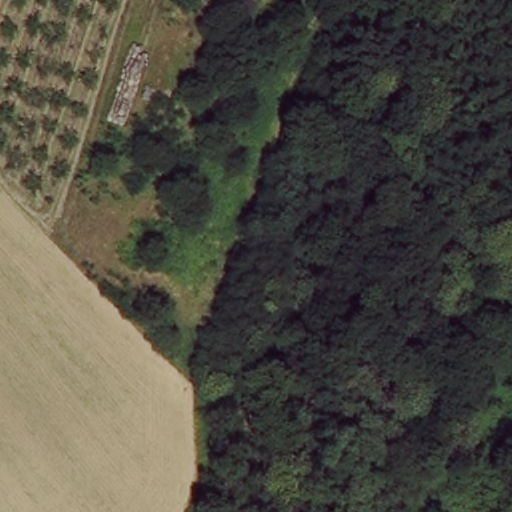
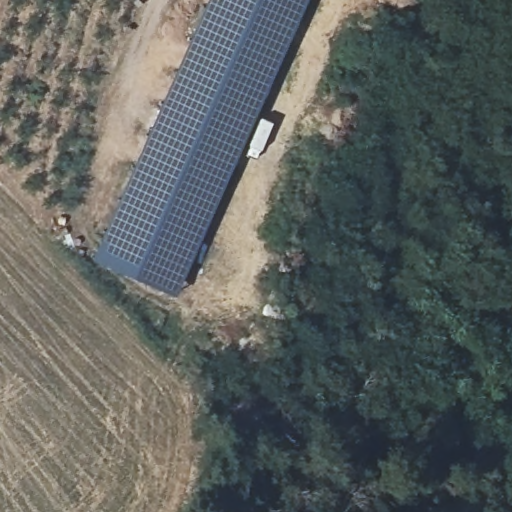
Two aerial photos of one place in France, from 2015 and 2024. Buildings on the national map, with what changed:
new [(204,0),(305,0),(236,157),(174,295),(89,258),(204,0)]

